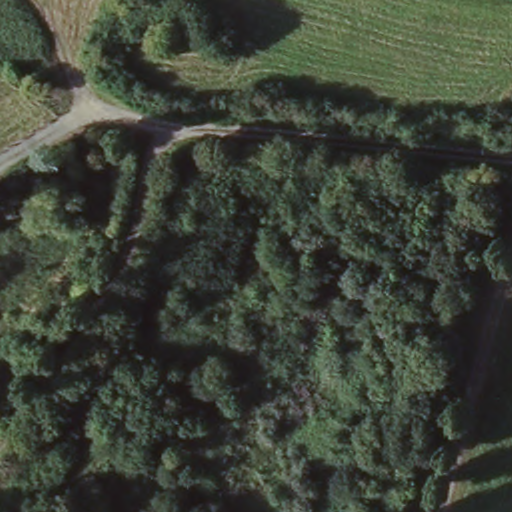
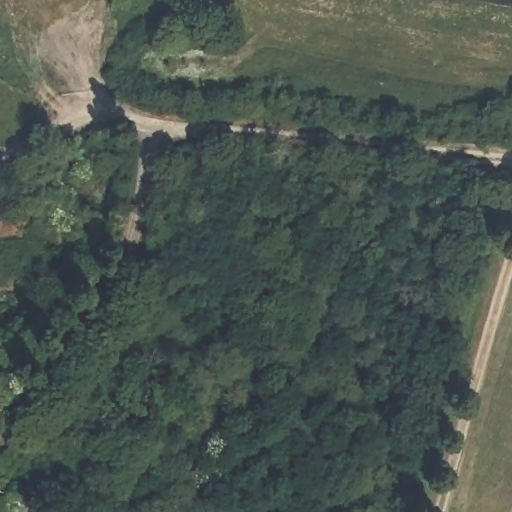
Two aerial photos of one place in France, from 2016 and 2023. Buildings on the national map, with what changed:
unchanged [(0,398),(9,405),(0,420),(0,398)]
unchanged [(47,512),(18,512),(0,508),(0,481),(52,494),(47,512)]

